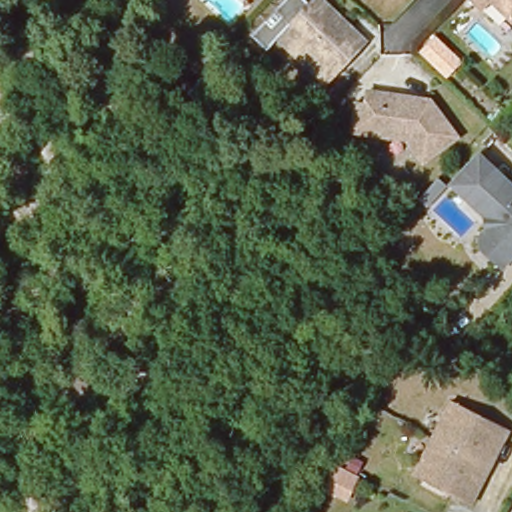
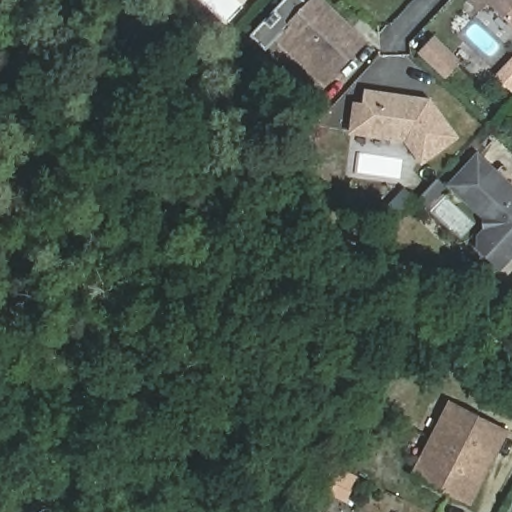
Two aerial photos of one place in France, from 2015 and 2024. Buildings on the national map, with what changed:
unchanged [(317,67),(282,34),(313,0),(360,44),(346,58),(329,77),(317,67)]
unchanged [(482,11),(471,0),(512,0),(512,22),(490,1),(482,11)]
unchanged [(431,40),(453,60),(442,71),(421,51),(431,40)]
unchanged [(424,96),(451,132),(417,158),(400,135),(347,128),(351,100),(360,101),(362,88),(424,96)]
unchanged [(478,240),(485,233),(484,218),(450,186),(477,157),(512,190),(512,255),(508,259),(500,268),(478,248),(478,240)]
unchanged [(452,401),(509,431),(470,505),(413,476),(452,401)]
unchanged [(346,504),(321,492),(335,464),(360,475),(346,504)]

